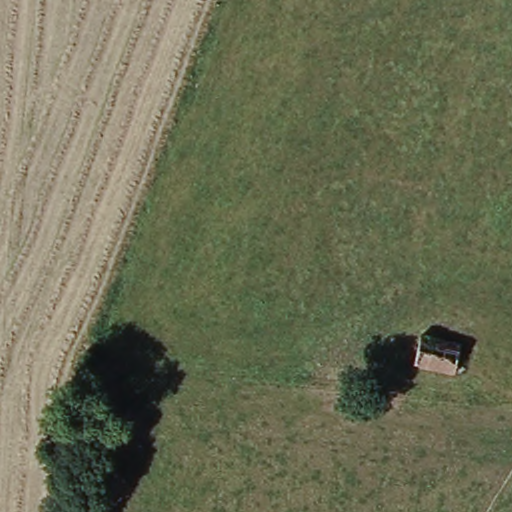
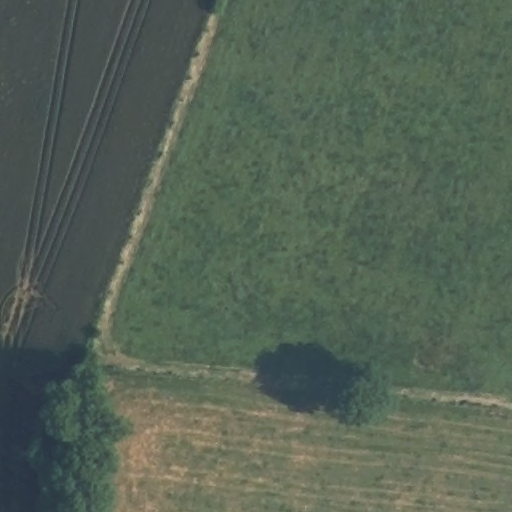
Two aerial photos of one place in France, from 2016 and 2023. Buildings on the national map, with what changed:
unchanged [(458,346),(451,375),(414,365),(422,337),(458,346)]

